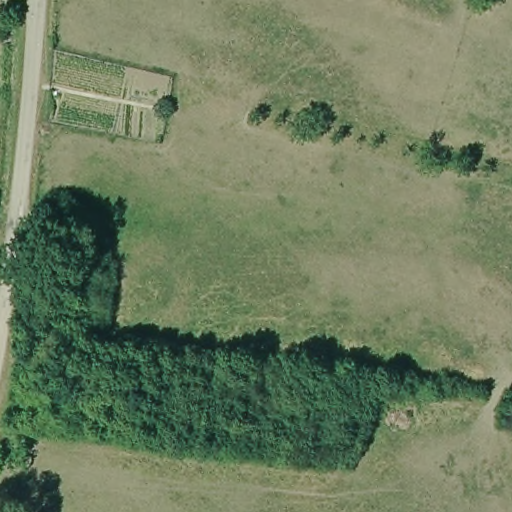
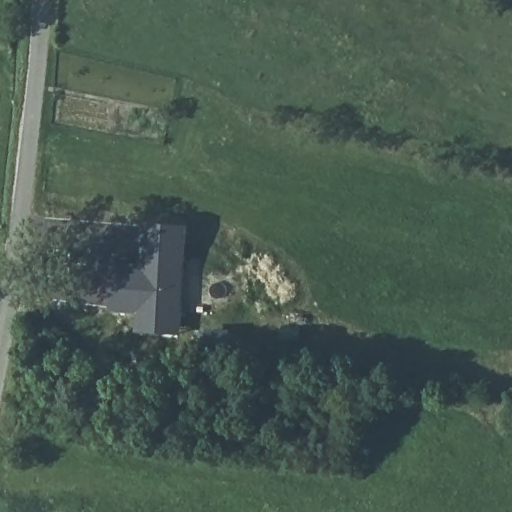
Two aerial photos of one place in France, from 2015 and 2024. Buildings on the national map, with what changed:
new [(140,263),(142,221),(190,224),(181,334),(135,332),(136,313),(109,311),(113,261),(140,263)]

